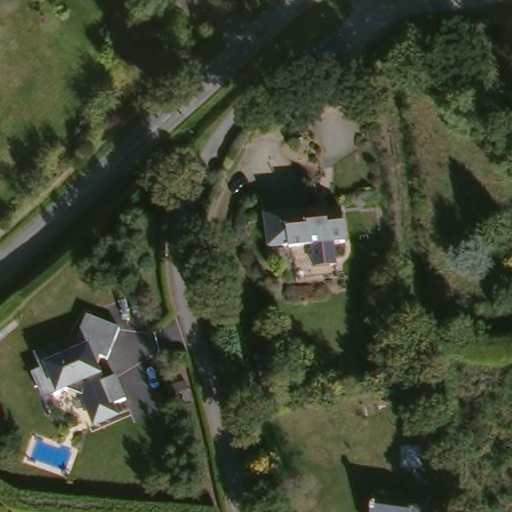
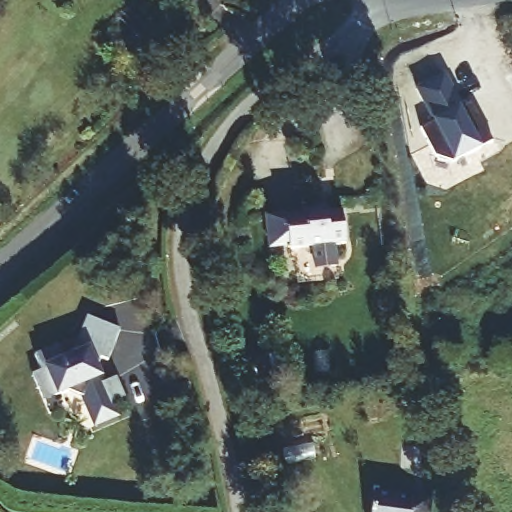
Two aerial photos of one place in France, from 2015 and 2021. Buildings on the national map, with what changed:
new [(434,160),(420,131),(432,125),(413,91),(444,75),(463,109),(471,104),(491,143),(481,150),(454,166),(434,160)]
unchanged [(293,245),(293,242),(273,246),(267,217),(287,212),(287,210),(306,206),(307,211),(341,205),(347,234),(293,245)]
unchanged [(122,326),(113,357),(106,355),(102,367),(108,382),(122,376),(132,399),(119,405),(123,415),(101,424),(89,396),(73,390),(64,394),(61,386),(46,392),(38,375),(47,370),(40,355),(64,345),(70,360),(76,357),(88,316),(122,326)]
unchanged [(435,498),(433,512),(375,512),(378,490),(435,498)]

